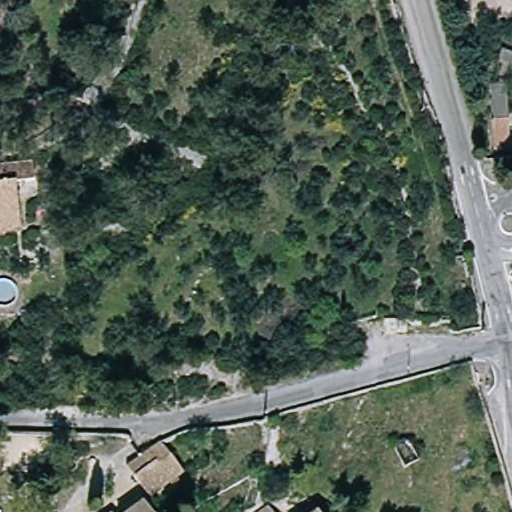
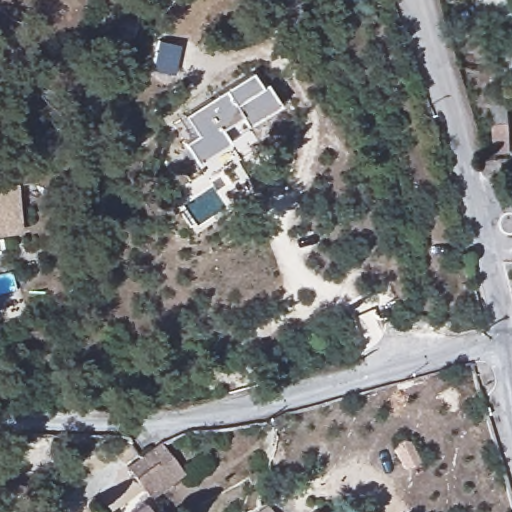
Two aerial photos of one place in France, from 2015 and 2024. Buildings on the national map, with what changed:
new [(194,135),(182,115),(250,71),(261,86),(265,83),(278,105),(246,126),(239,116),(219,129),(228,142),(196,163),(182,143),(194,135)]
unchanged [(483,90),(501,92),(502,160),(486,159),(483,90)]
unchanged [(0,168),(32,165),(33,184),(14,186),(19,235),(0,238),(0,168)]
unchanged [(161,444),(162,444),(180,472),(144,496),(123,464),(138,457),(161,444)]
unchanged [(145,512),(126,512),(138,502),(145,512)]
unchanged [(265,504),(270,512),(253,512),(265,504)]
unchanged [(315,507),(317,512),(307,512),(315,507)]
unchanged [(110,509),(112,512),(106,512),(110,509)]

